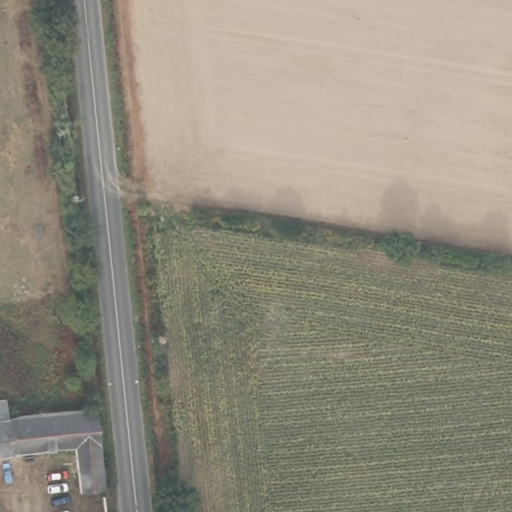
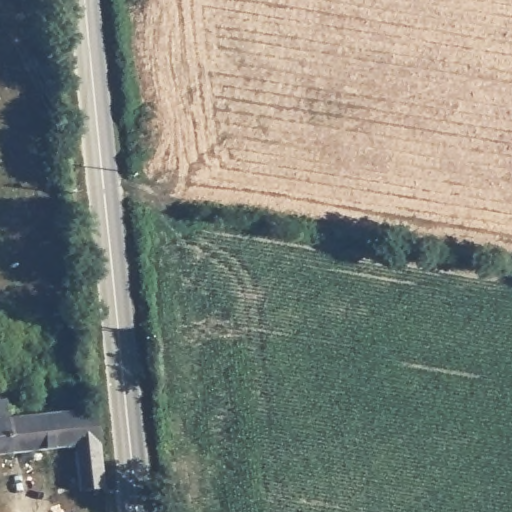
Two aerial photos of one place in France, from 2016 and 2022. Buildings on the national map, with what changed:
unchanged [(79,494),(75,451),(0,455),(0,400),(6,399),(7,416),(96,413),(104,493),(79,494)]

